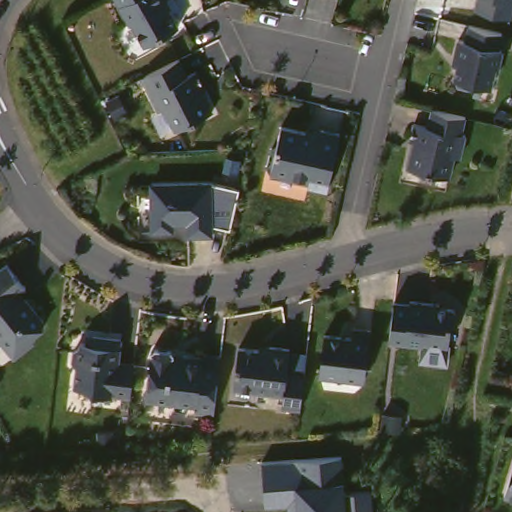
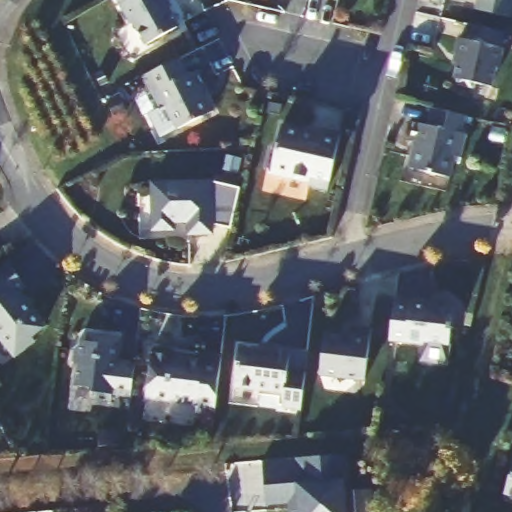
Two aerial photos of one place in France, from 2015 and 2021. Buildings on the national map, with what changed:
unchanged [(179,25),(147,44),(134,22),(132,24),(118,0),(166,0),(165,0),(179,25)]
unchanged [(481,0),(512,0),(512,16),(479,9),(481,0)]
unchanged [(499,46),(503,47),(498,66),(496,66),(492,85),(475,82),(472,86),(459,83),(458,78),(456,77),(460,56),(455,55),(459,37),(467,39),(470,24),(493,29),(503,31),(499,46)]
unchanged [(184,57),(193,74),(201,70),(209,86),(206,87),(217,110),(180,129),(169,106),(164,109),(147,75),(184,57)]
unchanged [(119,92),(128,110),(114,117),(105,100),(119,92)]
unchanged [(466,125),(470,126),(465,150),(459,149),(454,170),(412,161),(418,135),(414,134),(418,115),(432,119),(436,101),(469,109),(466,125)]
unchanged [(331,187),(312,182),(313,179),(274,169),(270,163),(274,146),(281,142),(285,121),(310,127),(311,126),(324,129),(325,125),(344,130),(331,187)]
unchanged [(213,180),(242,185),(233,226),(217,222),(217,227),(212,232),(193,232),(193,220),(178,220),(178,228),(155,229),(153,181),(213,180)]
unchanged [(29,278),(20,285),(26,292),(29,290),(47,313),(46,318),(34,328),(37,332),(17,348),(0,326),(0,264),(11,255),(29,278)]
unchanged [(425,358),(427,341),(393,337),(398,298),(414,300),(414,297),(444,301),(444,305),(459,306),(460,310),(458,323),(455,325),(453,341),(450,361),(425,358)]
unchanged [(328,369),(333,329),(361,332),(362,323),(379,325),(373,375),(328,369)]
unchanged [(128,393),(109,390),(109,397),(90,395),(91,387),(76,385),(79,366),(74,360),(76,347),(82,342),(83,340),(94,341),(95,333),(124,337),(120,358),(133,360),(128,393)]
unchanged [(277,346),(277,342),(297,345),(294,366),(310,367),(308,391),(306,405),(288,403),(289,388),(241,383),(245,343),(277,346)]
unchanged [(153,350),(157,346),(173,348),(176,353),(204,356),(204,352),(223,355),(215,415),(197,412),(198,405),(147,398),(153,350)]
unchanged [(384,417),(402,420),(400,434),(382,431),(384,417)]
unchanged [(113,432),(114,445),(99,446),(98,433),(113,432)]
unchanged [(343,455),(346,480),(347,492),(371,490),(372,512),(288,512),(287,503),(267,505),(263,462),(343,455)]
unchanged [(509,490),(512,479),(512,490),(509,490)]
unchanged [(109,505),(110,512),(91,512),(90,508),(109,505)]

